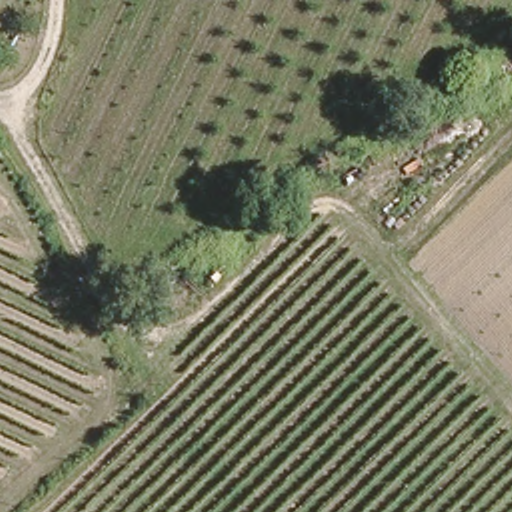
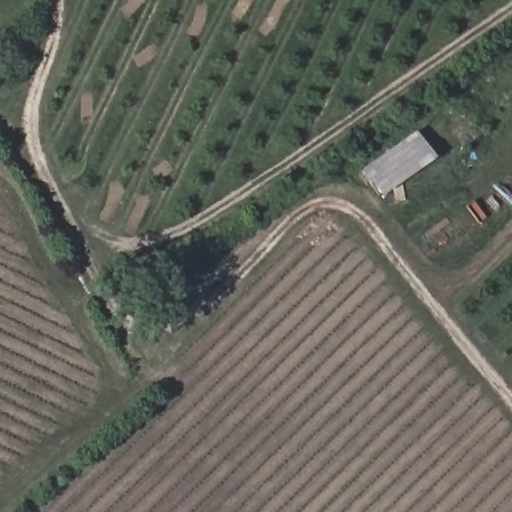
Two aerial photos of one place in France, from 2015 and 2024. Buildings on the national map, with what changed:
new [(414,131),(433,158),(379,196),(360,170),(414,131)]

